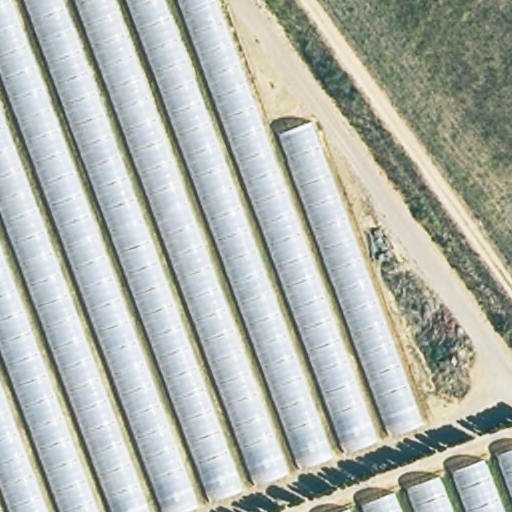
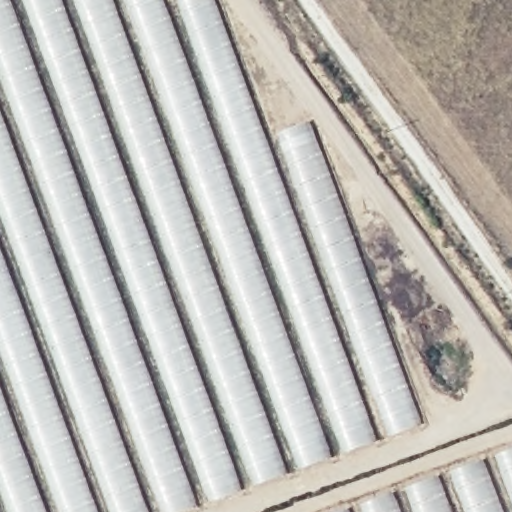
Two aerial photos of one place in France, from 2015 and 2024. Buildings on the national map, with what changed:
unchanged [(267,140),(305,122),(420,423),(185,512),(0,512),(0,0),(215,0),(267,140)]
unchanged [(512,512),(342,512),(512,449),(512,512)]

